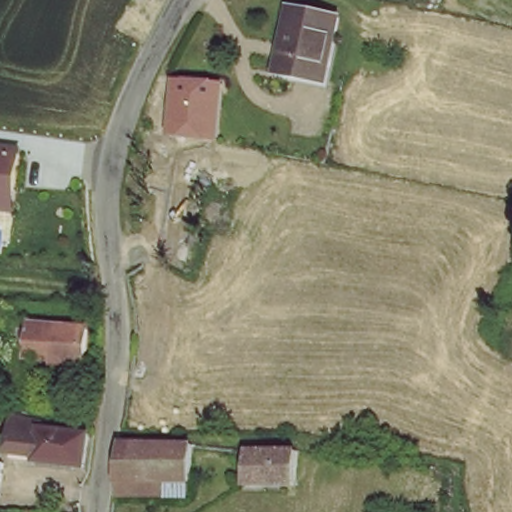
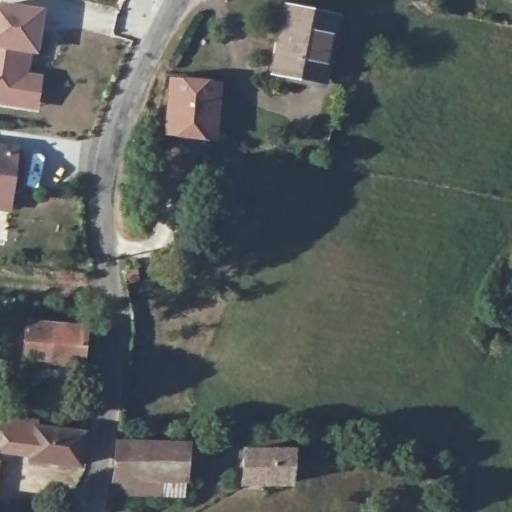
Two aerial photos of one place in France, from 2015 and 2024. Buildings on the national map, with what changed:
new [(0,105),(0,3),(2,1),(43,7),(36,54),(31,53),(28,72),(41,74),(37,110),(0,105)]
unchanged [(339,25),(334,49),(329,51),(319,87),(274,78),(289,13),(339,25)]
unchanged [(173,88),(221,88),(212,134),(211,143),(161,139),(173,88)]
unchanged [(10,187),(8,201),(0,200),(0,147),(13,149),(10,187)]
unchanged [(66,327),(99,333),(95,365),(63,362),(40,358),(38,379),(21,376),(23,357),(16,356),(22,322),(66,327)]
unchanged [(76,442),(74,474),(21,466),(20,456),(0,451),(0,438),(1,419),(23,426),(25,434),(76,442)]
unchanged [(122,451),(191,446),(195,479),(167,481),(170,498),(131,503),(113,505),(116,486),(122,451)]
unchanged [(294,488),(246,489),(243,448),(293,446),(294,488)]

